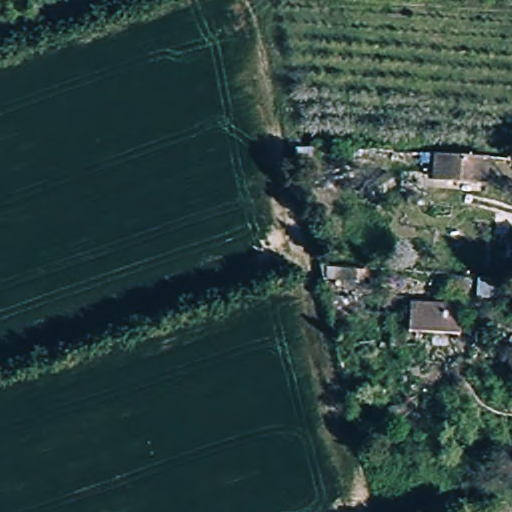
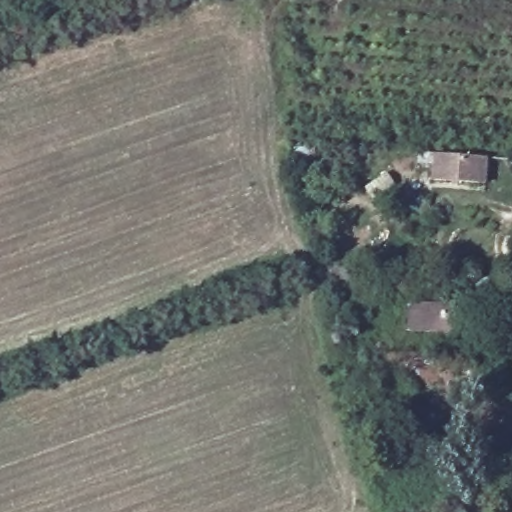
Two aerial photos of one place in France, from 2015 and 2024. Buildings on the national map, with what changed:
unchanged [(434,154),(486,158),(484,183),(432,179),(434,154)]
unchanged [(351,255),(365,290),(330,305),(311,269),(351,255)]
unchanged [(408,312),(458,316),(457,334),(407,332),(408,312)]

